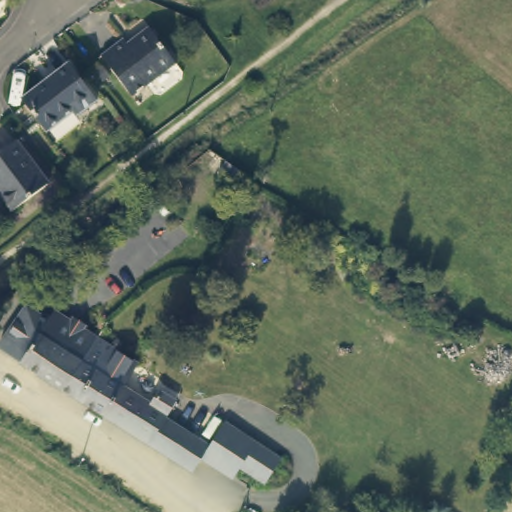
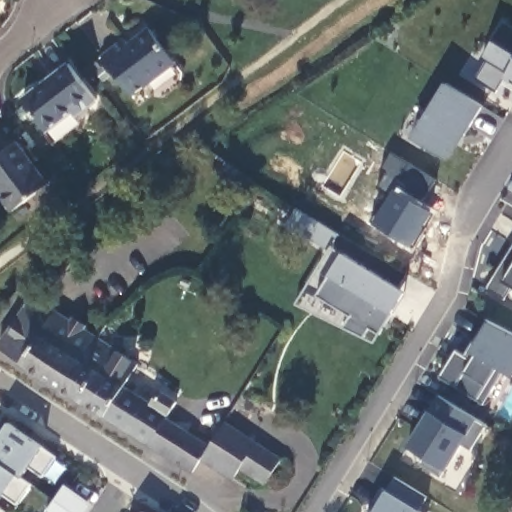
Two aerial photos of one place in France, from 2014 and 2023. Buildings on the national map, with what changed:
new [(477,80),(488,61),(483,59),(505,23),(512,27),(512,83),(504,79),(496,92),(477,80)]
unchanged [(158,35),(177,63),(133,95),(103,56),(127,39),(131,44),(152,28),(158,35)]
unchanged [(76,65),(102,100),(81,114),(78,111),(51,131),(29,100),(76,65)]
new [(411,138),(445,83),(482,107),(486,108),(458,152),(456,150),(448,161),(411,138)]
unchanged [(19,209),(0,183),(0,159),(21,143),(52,183),(19,209)]
new [(332,246),(343,253),(406,291),(391,316),(379,336),(367,329),(361,337),(344,328),(351,317),(315,295),(325,277),(314,270),(325,252),(284,227),(296,208),(338,235),(332,246)]
new [(504,300),(487,289),(512,249),(512,289),(504,300)]
unchanged [(5,349),(29,311),(49,324),(57,311),(101,339),(78,374),(67,389),(5,349)]
new [(503,371),(483,403),(437,377),(454,349),(465,357),(468,353),(488,319),(512,332),(512,376),(503,371)]
unchanged [(277,464),(265,483),(243,469),(237,480),(205,460),(198,473),(67,389),(78,374),(101,339),(142,365),(127,388),(153,406),(162,391),(181,403),(171,419),(182,426),(193,434),(210,444),(222,429),(255,449),(277,464)]
new [(471,450),(463,444),(447,470),(408,447),(429,412),(438,396),(485,425),(471,450)]
new [(28,469),(23,478),(30,483),(14,506),(3,497),(0,502),(0,434),(7,423),(42,446),(56,458),(42,479),(28,469)]
new [(419,512),(375,512),(378,506),(372,503),(380,489),(386,493),(393,479),(427,498),(419,512)]
new [(0,508),(4,512),(0,512),(0,508)]

